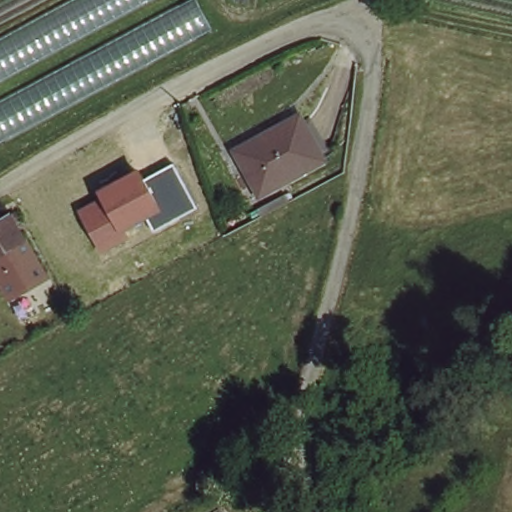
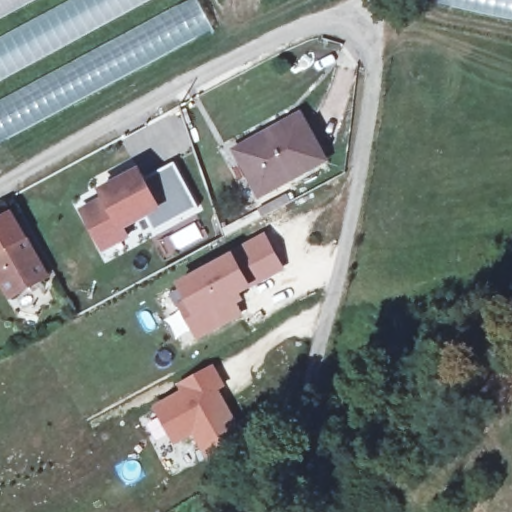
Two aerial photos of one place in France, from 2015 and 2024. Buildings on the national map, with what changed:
new [(0,16),(0,0),(31,0),(0,16)]
unchanged [(0,81),(0,38),(71,0),(149,0),(0,81)]
unchanged [(189,0),(199,0),(214,29),(0,143),(0,99),(189,0)]
new [(512,19),(437,3),(437,0),(512,0),(512,19)]
unchanged [(324,154),(259,191),(236,149),(267,131),(263,124),(298,106),(324,154)]
unchanged [(99,199),(96,190),(138,167),(144,181),(171,165),(196,209),(154,231),(146,217),(123,229),(129,240),(102,255),(78,210),(99,199)]
unchanged [(6,300),(0,289),(0,209),(3,207),(8,217),(43,280),(6,300)]
new [(231,252),(263,234),(286,269),(251,287),(240,292),(244,298),(236,303),(242,312),(196,338),(178,305),(186,301),(176,282),(231,252)]
new [(228,388),(220,393),(249,436),(208,462),(192,436),(174,445),(151,406),(180,390),(177,384),(212,364),(228,388)]
unchanged [(241,495),(273,464),(293,490),(269,512),(234,512),(228,507),(241,495)]

